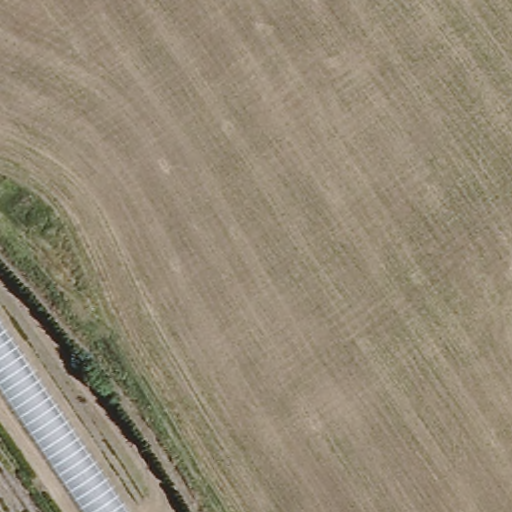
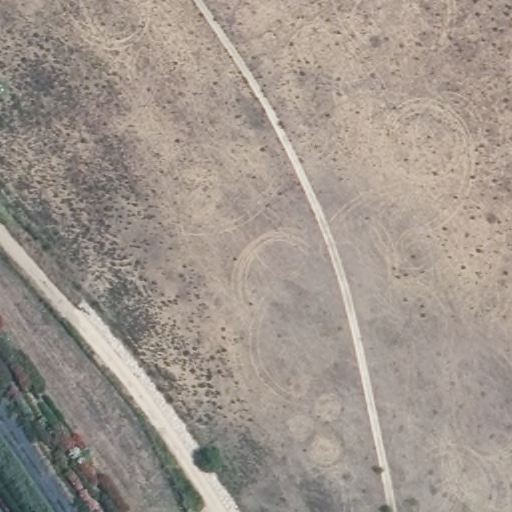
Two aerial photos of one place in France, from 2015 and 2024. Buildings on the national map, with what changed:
demolished [(0,392),(0,319),(131,512),(80,512),(0,392)]

